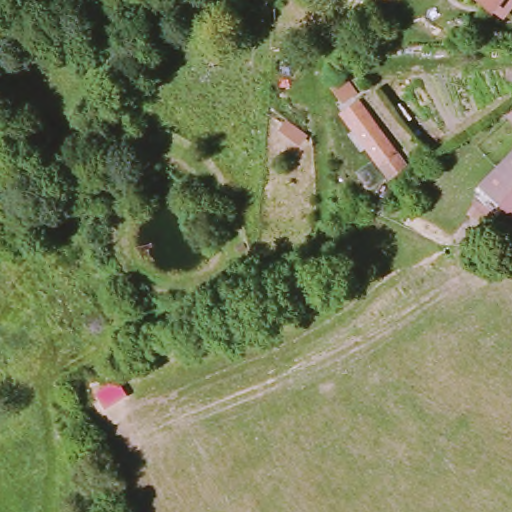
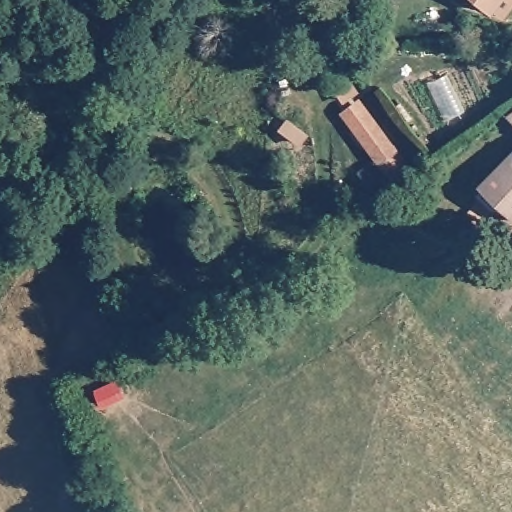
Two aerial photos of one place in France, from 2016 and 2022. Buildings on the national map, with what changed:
unchanged [(328,0),(341,0),(336,5),(328,0)]
unchanged [(477,0),(499,0),(491,11),(477,0)]
unchanged [(334,117),(356,100),(394,152),(408,169),(388,182),(375,167),(334,117)]
unchanged [(509,116),(512,114),(512,121),(509,116)]
unchanged [(480,190),(512,152),(512,216),(480,190)]
unchanged [(507,247),(501,252),(492,245),(495,239),(499,231),(512,237),(512,251),(507,247)]

